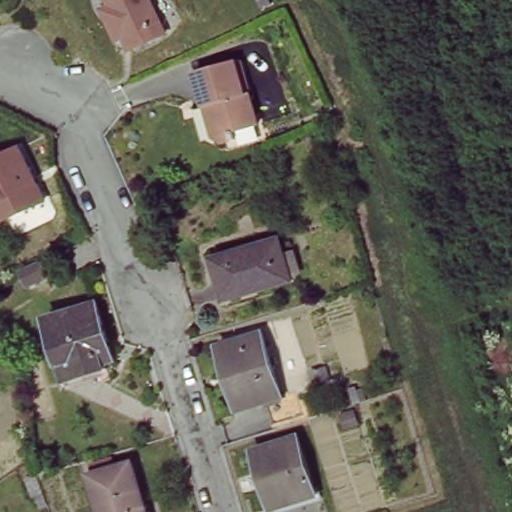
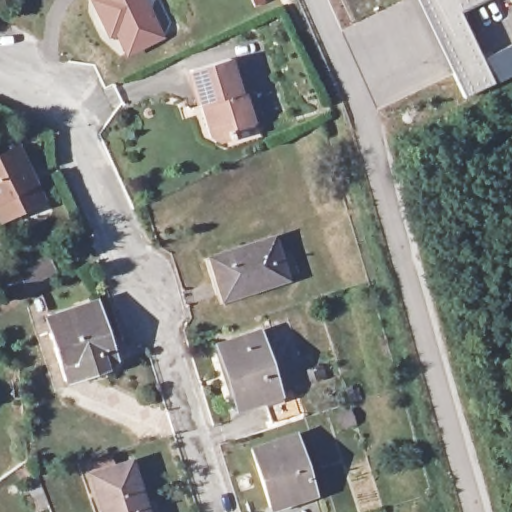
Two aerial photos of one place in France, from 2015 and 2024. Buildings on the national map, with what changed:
unchanged [(103,5),(101,0),(142,0),(157,31),(123,47),(117,35),(110,37),(105,25),(96,9),(103,5)]
new [(460,11),(495,88),(461,105),(413,0),(481,0),(460,11)]
unchanged [(207,132),(200,104),(190,69),(227,57),(237,91),(241,90),(250,122),(228,129),(230,135),(226,136),(218,139),(207,132)]
unchanged [(38,197),(0,216),(0,153),(14,147),(38,197)]
unchanged [(81,252),(70,256),(65,243),(77,240),(81,252)]
unchanged [(292,283),(231,303),(218,261),(280,242),(292,283)]
unchanged [(48,268),(21,281),(14,267),(42,254),(48,268)]
unchanged [(110,358),(100,361),(102,367),(64,378),(50,332),(55,331),(49,313),(92,301),(110,358)]
unchanged [(282,401),(241,414),(221,349),(262,336),(282,401)]
unchanged [(281,512),(276,512),(257,450),(300,437),(318,500),(281,512)]
unchanged [(106,512),(105,510),(102,510),(93,477),(131,466),(145,512),(106,512)]

